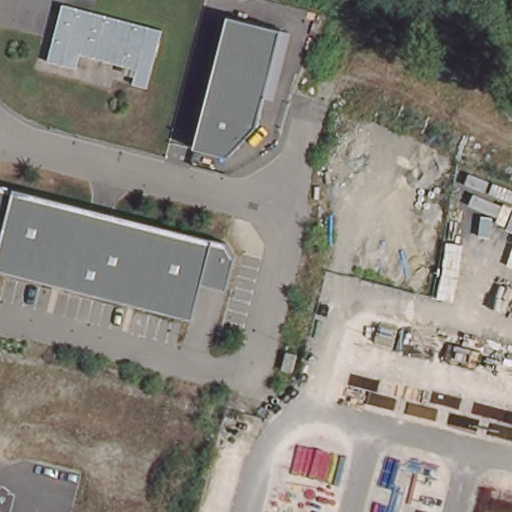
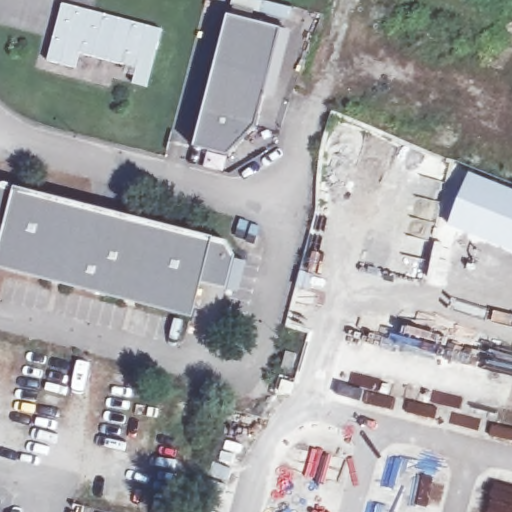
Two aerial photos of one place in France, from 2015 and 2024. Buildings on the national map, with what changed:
unchanged [(62,4),(162,30),(147,87),(132,83),(136,69),(80,54),(76,69),(47,62),(62,4)]
unchanged [(227,19),(281,33),(255,131),(227,157),(193,150),(227,19)]
new [(512,188),(512,252),(445,224),(468,171),(512,188)]
unchanged [(214,240),(195,318),(0,268),(0,246),(15,189),(214,240)]

